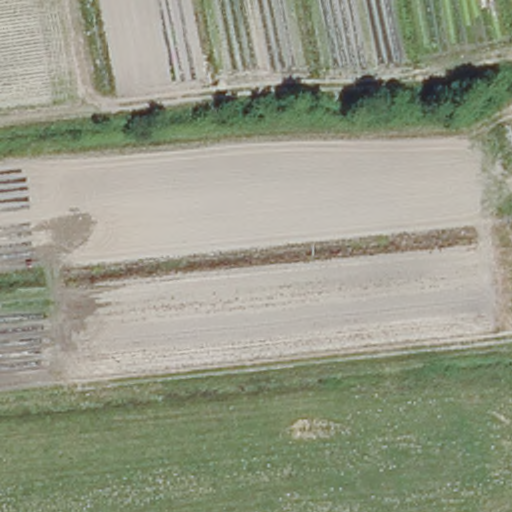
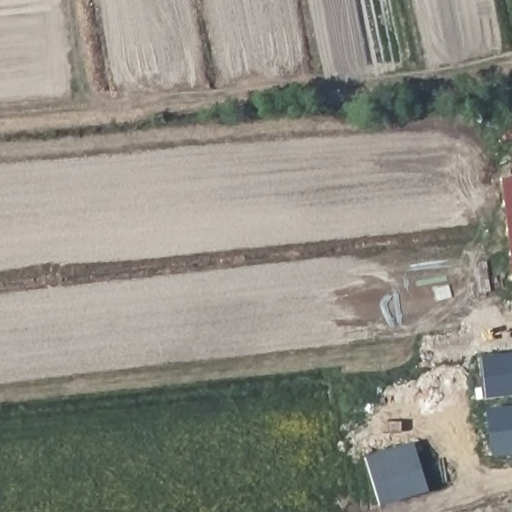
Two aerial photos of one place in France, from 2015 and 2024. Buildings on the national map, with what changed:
new [(512,354),(512,393),(483,397),(478,359),(512,354)]
new [(491,456),(485,410),(512,406),(512,453),(491,456)]
new [(427,491),(380,506),(365,458),(412,444),(427,491)]

